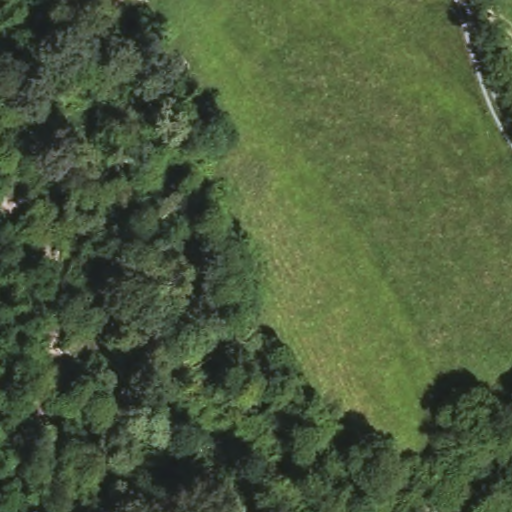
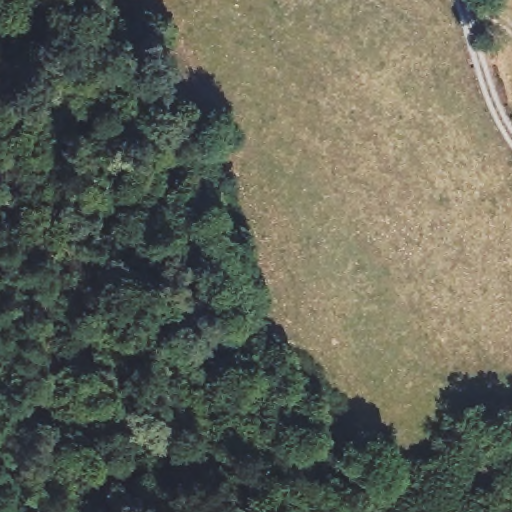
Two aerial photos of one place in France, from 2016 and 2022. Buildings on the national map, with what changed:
[]

